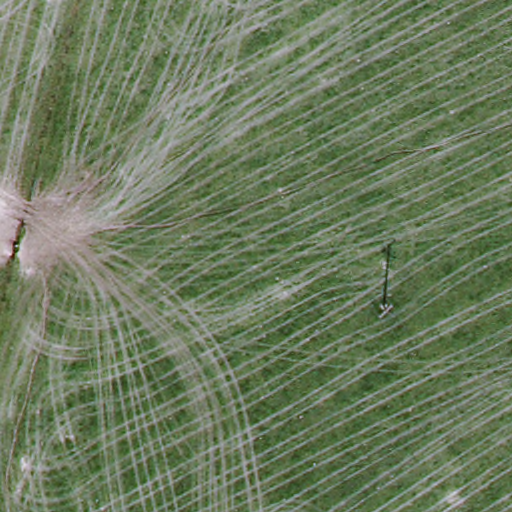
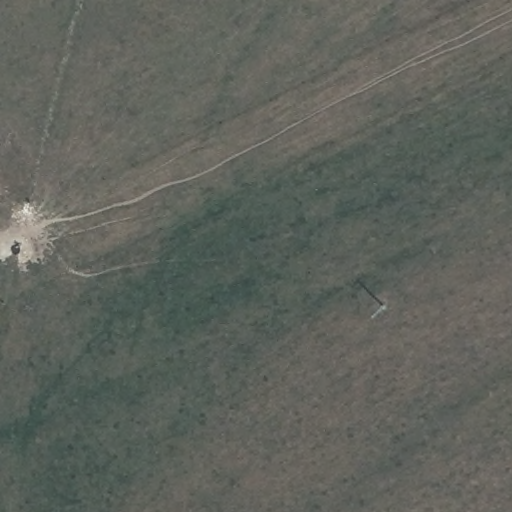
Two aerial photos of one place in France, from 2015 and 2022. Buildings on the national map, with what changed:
[]

